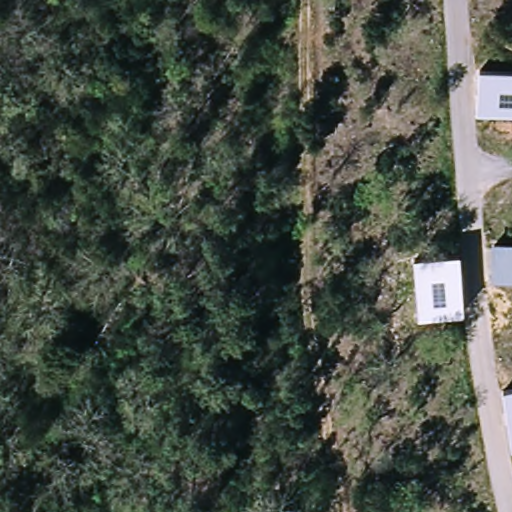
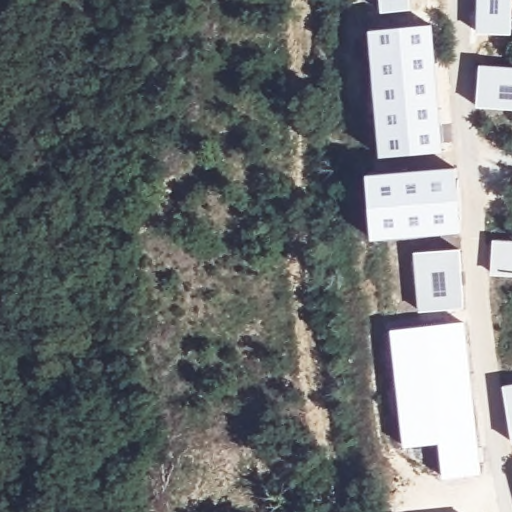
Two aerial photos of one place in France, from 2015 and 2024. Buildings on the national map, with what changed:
new [(382,12),(381,0),(411,0),(412,9),(382,12)]
new [(476,33),(477,0),(512,0),(512,13),(511,35),(476,33)]
new [(369,29),(432,24),(443,151),(380,156),(369,29)]
unchanged [(482,65),(512,66),(512,106),(481,104),(482,65)]
new [(457,167),(462,232),(372,238),(367,175),(457,167)]
unchanged [(512,279),(491,277),(493,239),(512,240),(512,279)]
unchanged [(462,303),(422,307),(416,253),(457,249),(462,303)]
new [(404,446),(391,329),(465,321),(481,473),(444,477),(440,443),(404,446)]
unchanged [(512,383),(512,439),(503,384),(512,383)]

